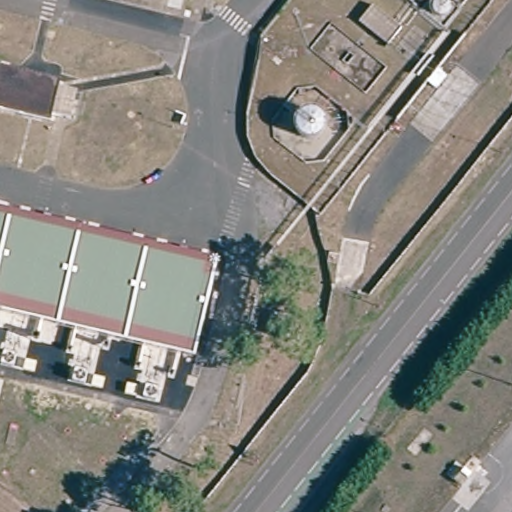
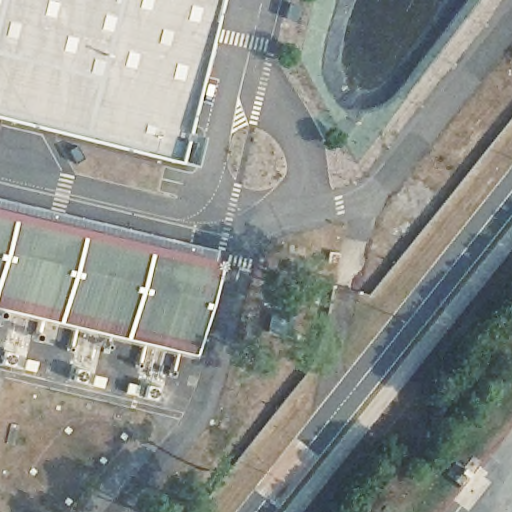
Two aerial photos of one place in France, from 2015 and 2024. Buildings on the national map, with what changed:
new [(175,161),(0,117),(0,0),(215,0),(175,161)]
demolished [(456,17),(452,21),(447,22),(442,19),(440,14),(442,8),(446,5),(451,4),(456,7),(458,12),(456,17)]
demolished [(388,44),(358,21),(371,7),(399,31),(388,44)]
demolished [(49,88),(58,91),(53,112),(42,110),(41,115),(0,106),(0,65),(49,77),(46,87),(49,88)]
unchanged [(0,209),(219,262),(196,356),(0,308),(0,209)]

